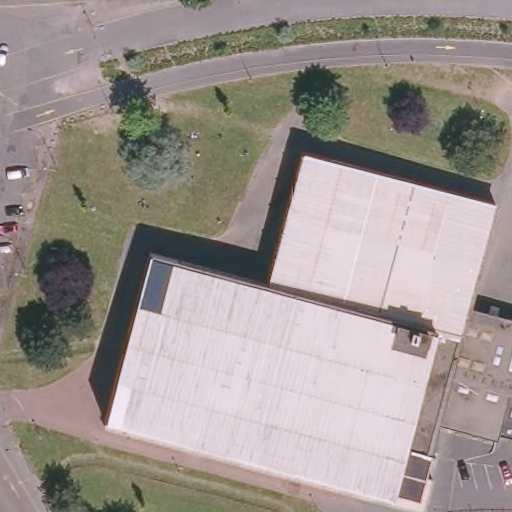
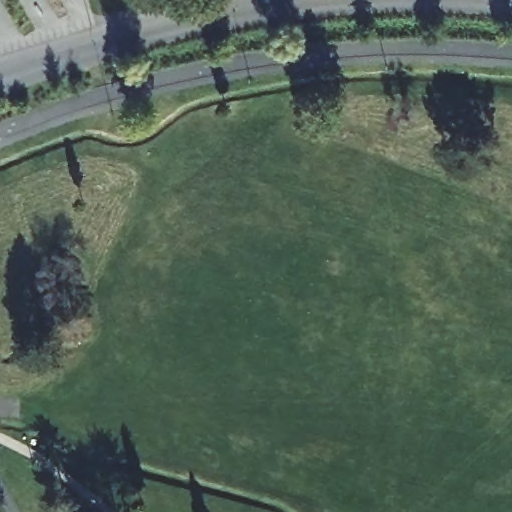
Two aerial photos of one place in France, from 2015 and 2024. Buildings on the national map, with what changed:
demolished [(429,445),(437,447),(437,450),(432,449),(427,468),(434,470),(433,472),(431,472),(422,505),(348,483),(350,477),(350,476),(354,461),(191,417),(110,396),(149,250),(267,281),(303,146),(495,197),(467,303),(512,315),(512,384),(450,367),(429,445)]

